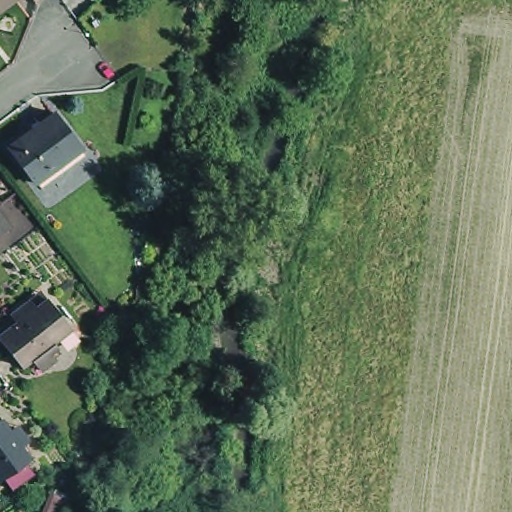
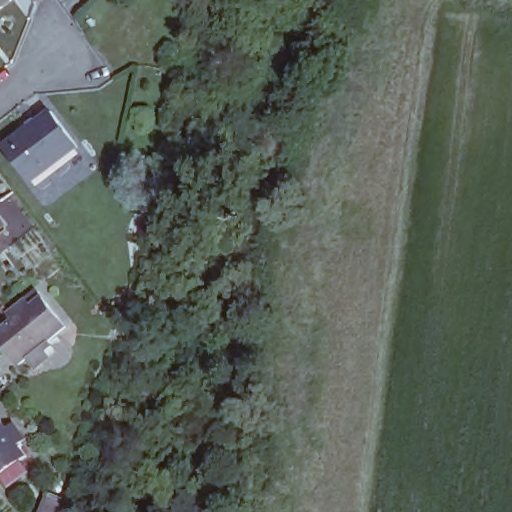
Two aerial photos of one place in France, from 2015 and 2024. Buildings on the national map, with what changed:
unchanged [(0,11),(0,0),(14,0),(0,11)]
unchanged [(32,183),(6,148),(53,112),(80,147),(32,183)]
unchanged [(16,361),(0,341),(0,324),(14,313),(8,305),(23,294),(28,301),(40,292),(65,322),(16,361)]
unchanged [(8,482),(1,471),(0,472),(0,413),(10,425),(16,420),(25,431),(18,436),(29,451),(21,457),(29,467),(8,482)]

